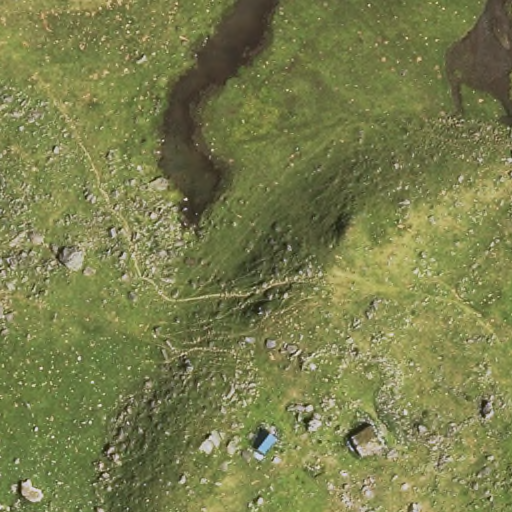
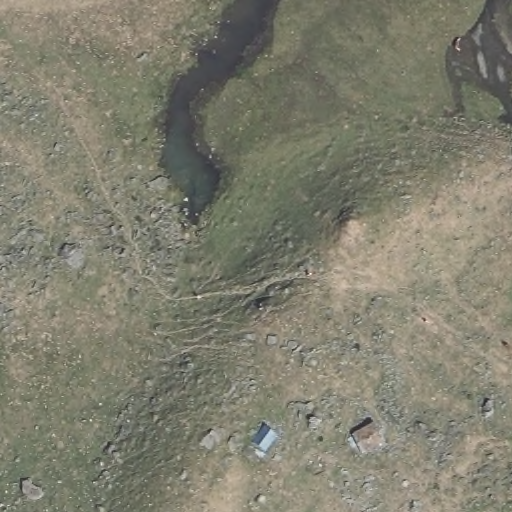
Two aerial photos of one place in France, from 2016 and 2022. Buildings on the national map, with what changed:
unchanged [(387,443),(364,455),(351,435),(361,429),(374,423),(387,443)]
unchanged [(262,426),(280,438),(265,457),(249,446),(262,426)]

